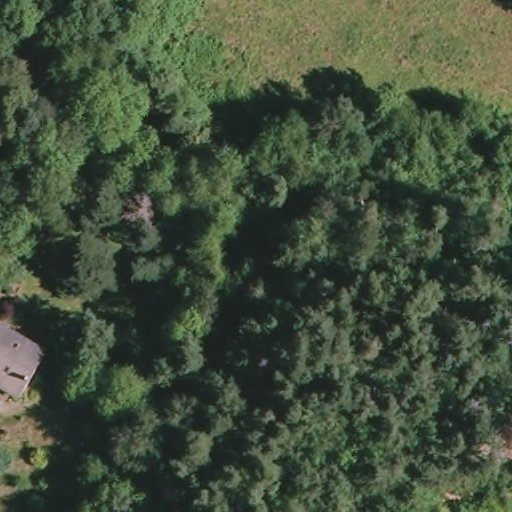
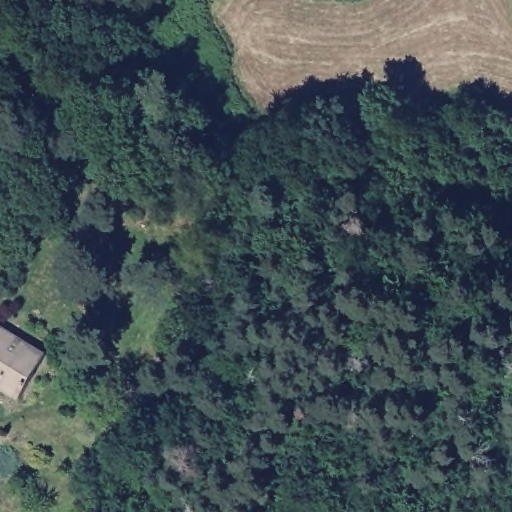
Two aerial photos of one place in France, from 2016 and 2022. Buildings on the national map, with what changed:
unchanged [(25,399),(0,380),(0,325),(50,356),(25,399)]

